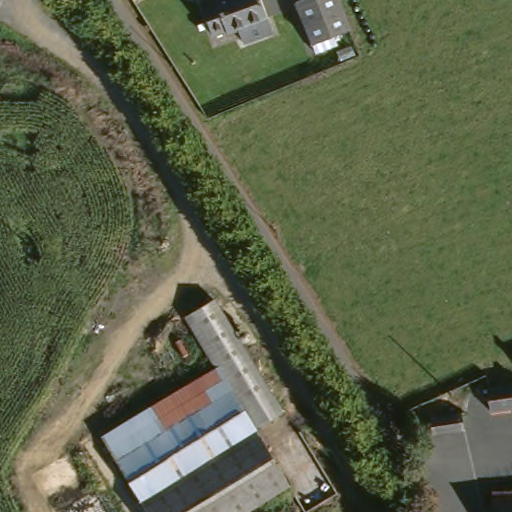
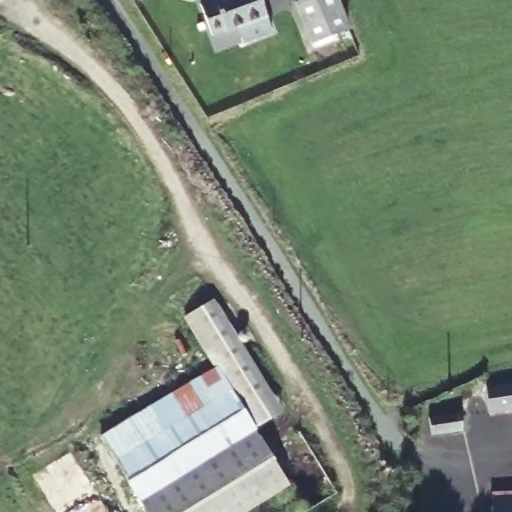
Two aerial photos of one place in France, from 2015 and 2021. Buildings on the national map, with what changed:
unchanged [(268,22),(270,27),(266,29),(241,39),(235,25),(224,29),(223,27),(209,33),(196,2),(201,0),(259,0),(268,22)]
unchanged [(297,0),(298,0),(339,0),(352,28),(313,43),(299,8),(297,0)]
unchanged [(181,316),(214,295),(282,411),(256,428),(288,484),(243,512),(145,512),(97,436),(212,367),(181,316)]
unchanged [(487,408),(485,399),(481,382),(512,376),(512,403),(487,408)]
unchanged [(415,438),(409,418),(441,410),(445,430),(415,438)]
unchanged [(491,512),(491,510),(512,508),(512,512),(491,512)]

